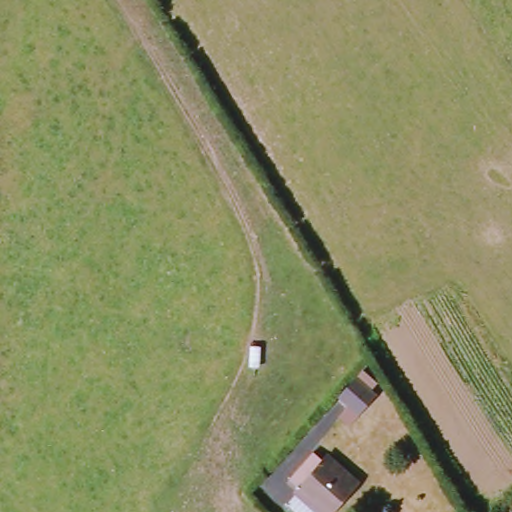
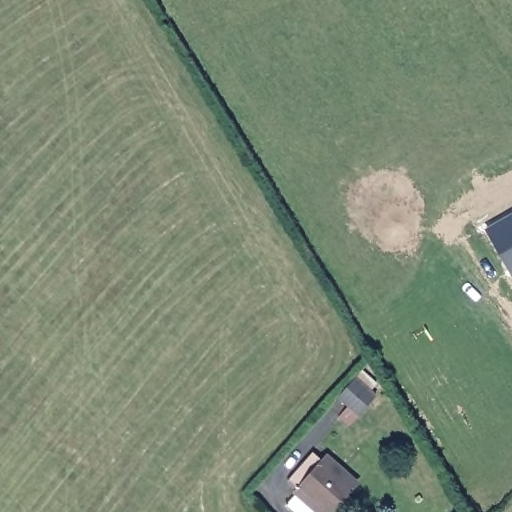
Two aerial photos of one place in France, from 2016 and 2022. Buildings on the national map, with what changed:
new [(512,277),(485,228),(512,213),(512,277)]
unchanged [(308,512),(307,511),(286,491),(290,485),(280,476),(309,447),(320,457),(325,452),(345,476),(353,485),(323,512),(308,512)]

